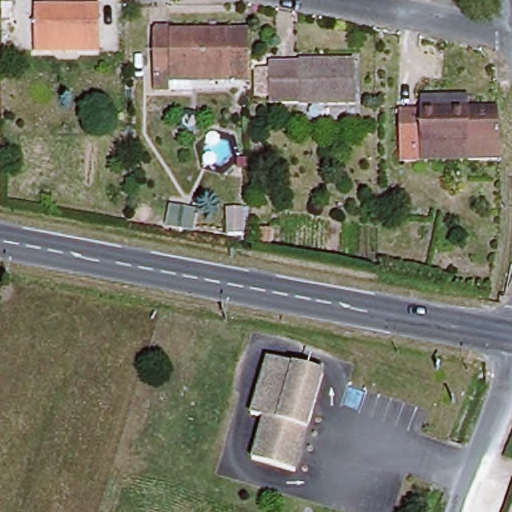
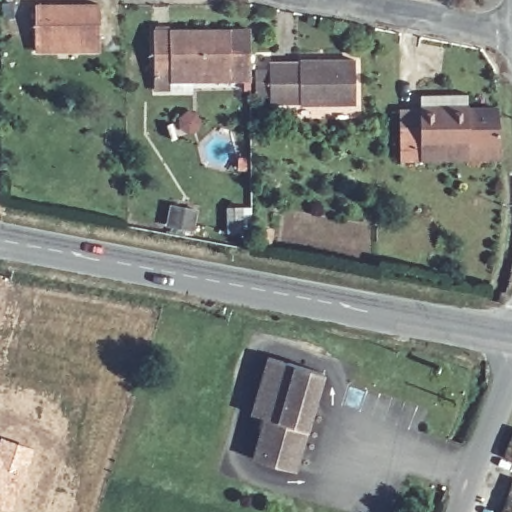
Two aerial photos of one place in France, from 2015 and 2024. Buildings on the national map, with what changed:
unchanged [(36,50),(36,39),(35,6),(99,5),(99,40),(100,50),(36,50)]
unchanged [(254,75),(152,75),(153,34),(253,33),(254,75)]
unchanged [(355,101),(302,102),(301,98),(272,98),(272,57),(356,57),(355,101)]
unchanged [(401,156),(401,105),(425,103),(425,90),(467,88),(468,105),(499,104),(500,156),(470,157),(422,156),(401,156)]
unchanged [(198,210),(194,234),(163,227),(169,203),(198,210)]
unchanged [(249,436),(270,356),(322,370),(295,470),(256,460),(243,456),(249,436)]
new [(12,510),(0,505),(0,436),(33,446),(12,510)]

